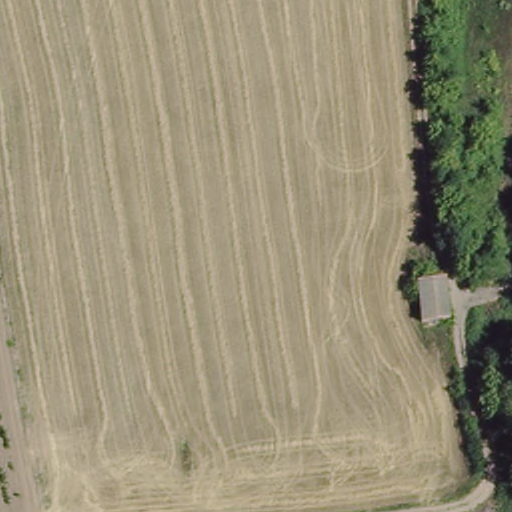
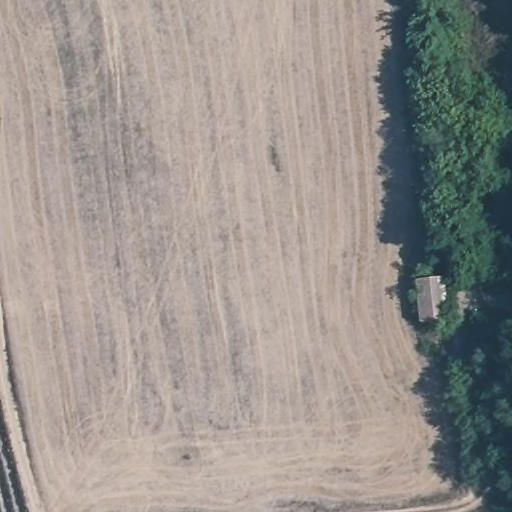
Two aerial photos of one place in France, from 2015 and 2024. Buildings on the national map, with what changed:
unchanged [(452,318),(422,320),(415,279),(445,275),(452,318)]

